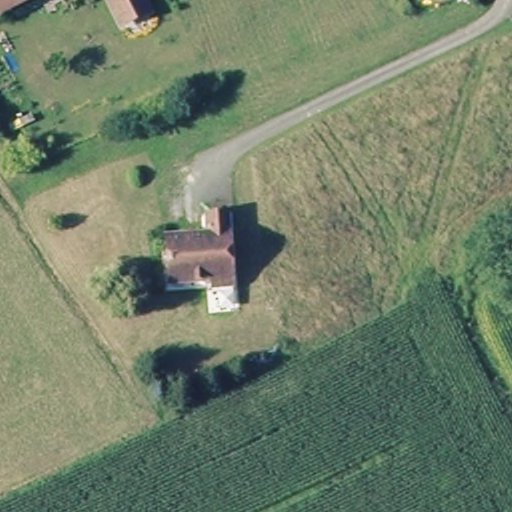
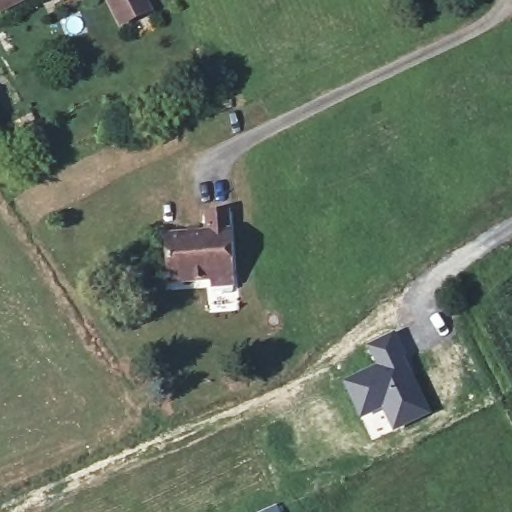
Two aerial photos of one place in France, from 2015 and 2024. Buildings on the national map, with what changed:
unchanged [(9,1),(0,6),(0,0),(11,0),(9,1)]
unchanged [(145,11),(121,25),(108,0),(139,0),(145,11)]
unchanged [(212,288),(212,281),(170,285),(167,238),(208,237),(208,214),(228,214),(232,275),(233,288),(212,288)]
new [(373,364),(365,343),(396,330),(432,413),(392,431),(382,410),(359,419),(341,379),(373,364)]

